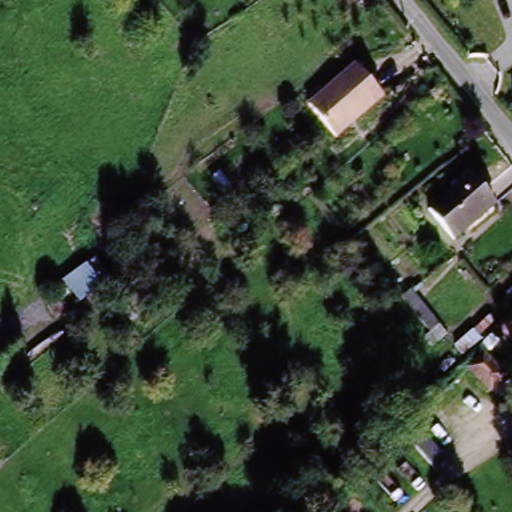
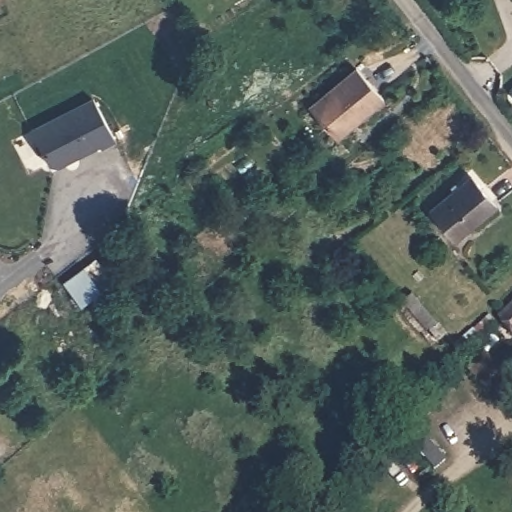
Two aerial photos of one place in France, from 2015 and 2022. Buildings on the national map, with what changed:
unchanged [(303,108),(351,67),(378,100),(330,140),(303,108)]
new [(117,140),(101,149),(99,145),(58,166),(49,162),(31,128),(91,95),(117,140)]
unchanged [(455,242),(432,215),(472,180),(495,207),(455,242)]
unchanged [(96,258),(114,283),(104,290),(80,306),(62,282),(86,265),(96,258)]
unchanged [(404,298),(414,291),(448,334),(439,342),(404,298)]
unchanged [(504,320),(512,313),(512,328),(504,320)]
unchanged [(493,388),(478,373),(472,368),(486,354),(492,360),(506,375),(493,388)]

